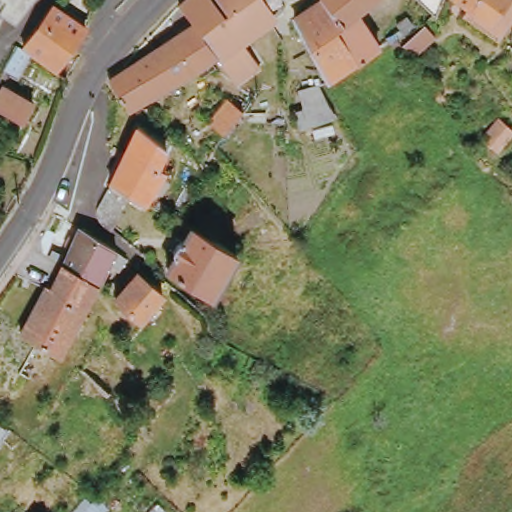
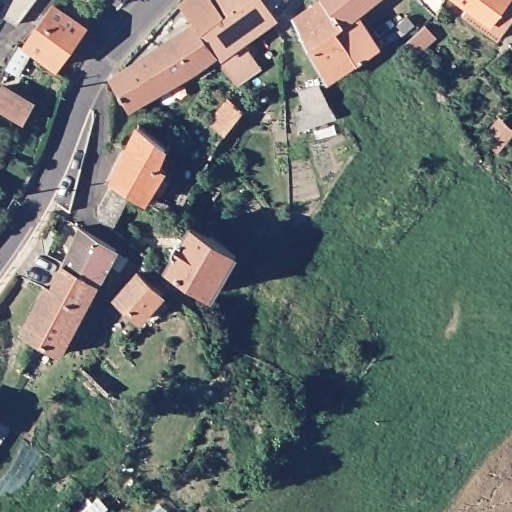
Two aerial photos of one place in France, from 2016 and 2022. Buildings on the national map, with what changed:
unchanged [(24,30),(0,19),(0,0),(47,0),(24,30)]
unchanged [(58,0),(62,2),(89,22),(65,65),(32,43),(43,26),(58,0)]
unchanged [(205,33),(196,21),(183,4),(187,0),(218,0),(229,13),(205,33)]
unchanged [(244,78),(222,55),(220,53),(205,33),(229,13),(230,12),(221,0),(275,0),(282,11),(272,18),(247,37),(267,61),(258,67),(244,78)]
unchanged [(349,26),(338,36),(359,64),(335,81),(334,82),(325,66),(297,22),(320,0),(323,0),(349,26)]
unchanged [(360,15),(349,26),(323,0),(376,0),(360,15)]
unchanged [(435,12),(421,0),(444,0),(435,12)]
unchanged [(512,27),(502,40),(468,15),(475,6),(465,0),(512,0),(512,27)]
unchanged [(363,64),(360,63),(359,64),(338,36),(349,26),(360,15),(372,30),(390,47),(363,64)]
unchanged [(172,39),(196,21),(205,33),(220,53),(196,70),(172,39)]
unchanged [(429,28),(440,40),(415,60),(405,46),(429,28)]
unchanged [(117,76),(172,39),(196,70),(135,110),(132,106),(113,83),(117,76)]
unchanged [(25,42),(38,51),(26,76),(12,68),(25,42)]
unchanged [(323,83),(336,118),(302,132),(299,112),(305,109),(301,92),(323,83)]
unchanged [(0,109),(0,95),(3,88),(22,99),(35,106),(25,124),(14,117),(0,109)]
unchanged [(247,109),(225,135),(207,123),(223,98),(247,109)]
unchanged [(512,128),(512,139),(497,157),(480,142),(500,118),(512,128)]
unchanged [(152,202),(143,198),(135,194),(116,184),(133,153),(145,131),(163,142),(153,163),(160,166),(168,171),(152,202)]
unchanged [(116,249),(99,282),(67,260),(78,227),(116,249)]
unchanged [(172,268),(192,227),(241,252),(220,295),(172,268)]
unchanged [(7,233),(0,246),(0,230),(7,233)]
unchanged [(24,337),(47,284),(52,286),(63,259),(67,260),(99,282),(62,355),(24,337)]
unchanged [(142,272),(168,294),(148,318),(122,293),(142,272)]
unchanged [(8,424),(0,437),(0,418),(8,424)]
unchanged [(112,508),(108,512),(87,512),(100,498),(112,508)]

